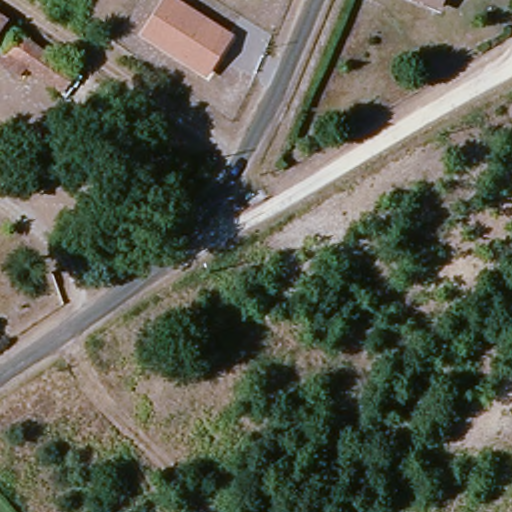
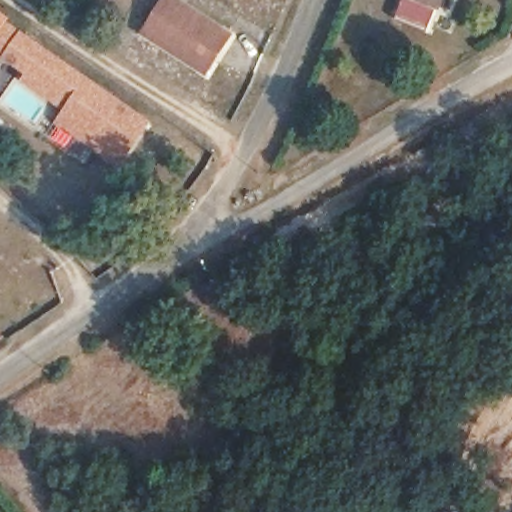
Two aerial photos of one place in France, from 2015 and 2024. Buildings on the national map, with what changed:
unchanged [(204,70),(149,34),(170,0),(179,0),(235,36),(225,51),(210,74),(204,70)]
unchanged [(435,12),(407,0),(439,0),(435,12)]
unchanged [(77,115),(52,97),(56,92),(18,65),(11,75),(0,67),(0,47),(11,31),(94,89),(77,115)]
new [(98,85),(150,122),(116,166),(55,123),(64,112),(21,82),(27,72),(56,92),(52,97),(77,115),(94,89),(98,85)]

